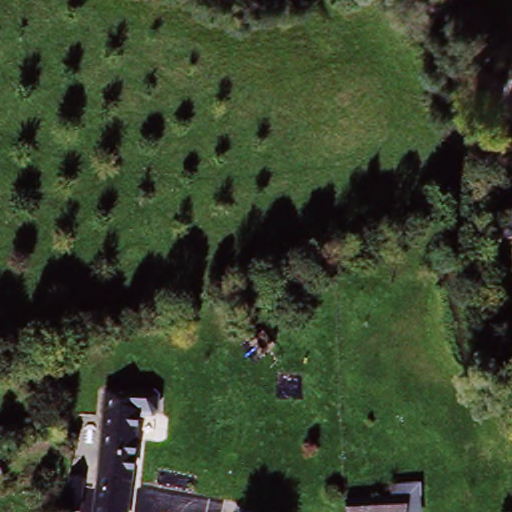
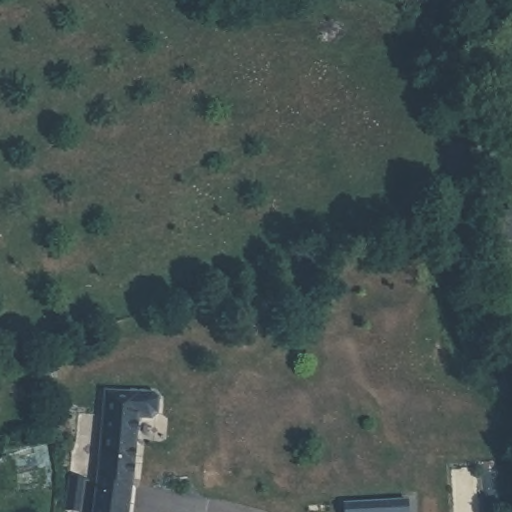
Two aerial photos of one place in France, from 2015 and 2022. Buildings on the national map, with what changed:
unchanged [(90,443),(95,395),(125,397),(120,445),(90,443)]
unchanged [(120,445),(113,512),(84,512),(90,443),(120,445)]
unchanged [(393,498),(394,486),(427,485),(428,512),(348,512),(348,500),(393,498)]

